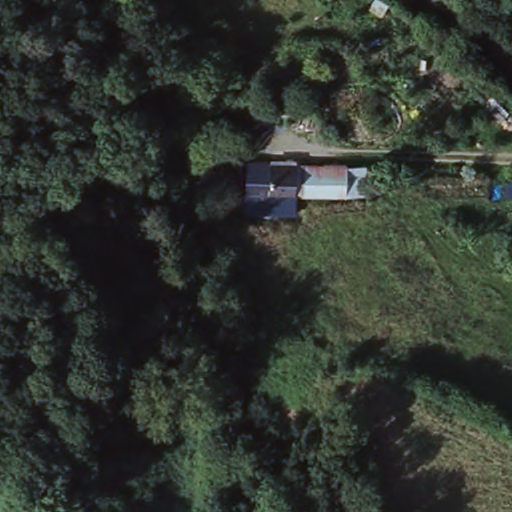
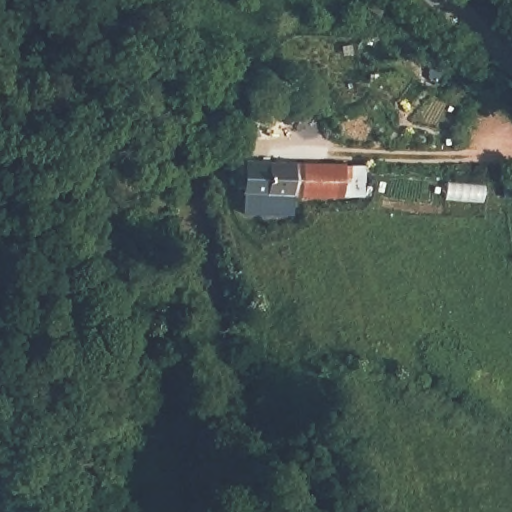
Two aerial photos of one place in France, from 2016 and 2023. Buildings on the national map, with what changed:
unchanged [(349,197),(274,196),(261,196),(262,165),(274,165),(274,164),(349,165),(349,197)]

